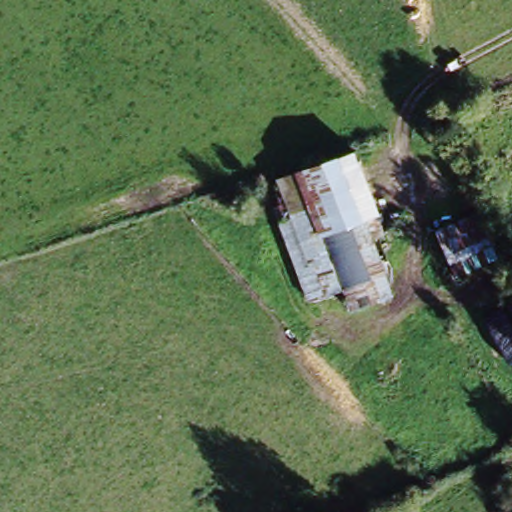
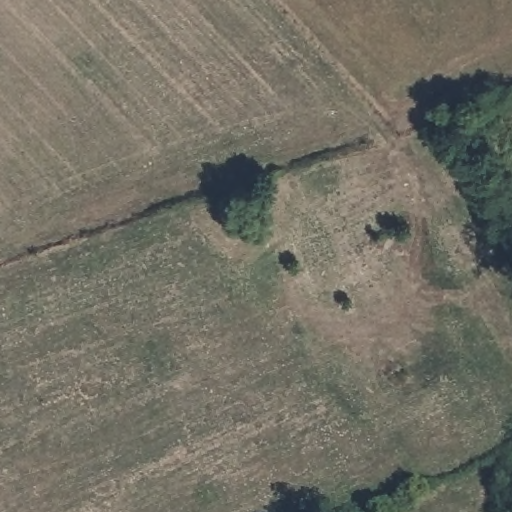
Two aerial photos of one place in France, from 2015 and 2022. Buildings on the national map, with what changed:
demolished [(351,149),(374,215),(317,236),(340,290),(306,301),(277,225),(291,219),(276,179),(351,149)]

